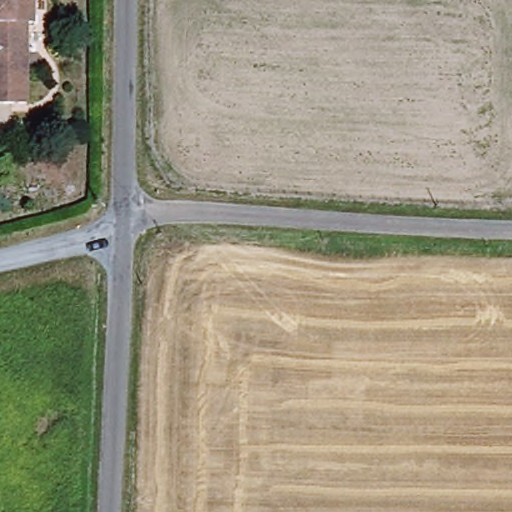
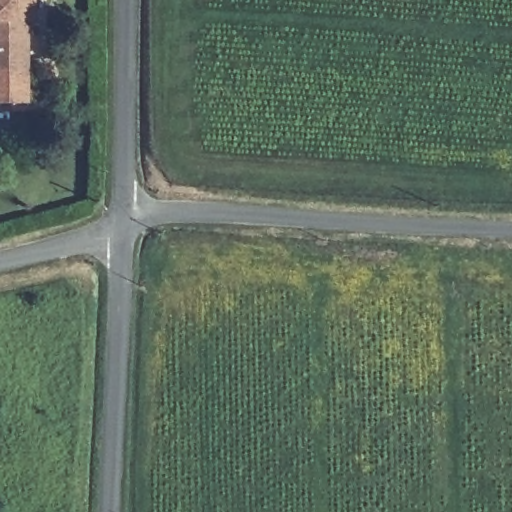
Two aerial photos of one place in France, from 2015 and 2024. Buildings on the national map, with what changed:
unchanged [(35,32),(28,34),(28,52),(20,53),(19,80),(0,79),(0,5),(35,7),(35,32)]

